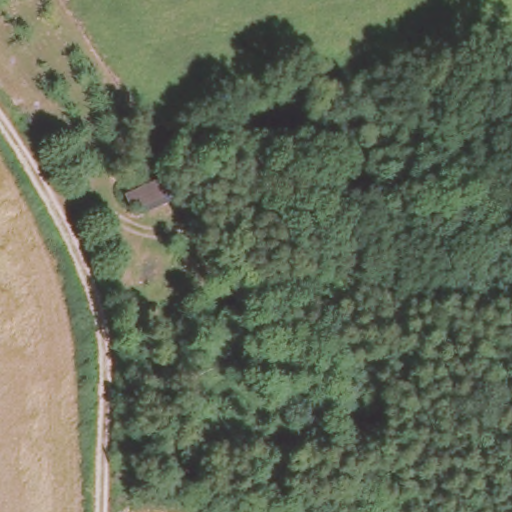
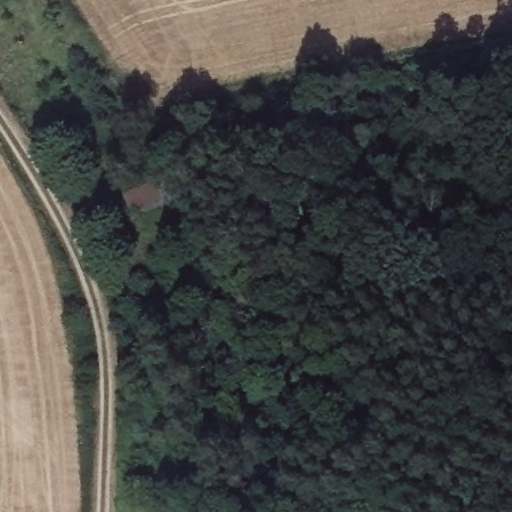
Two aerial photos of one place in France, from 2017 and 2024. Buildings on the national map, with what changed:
unchanged [(166,176),(184,200),(135,224),(124,192),(166,176)]

